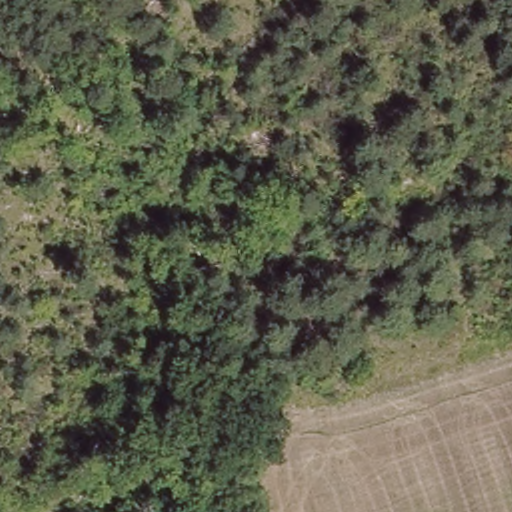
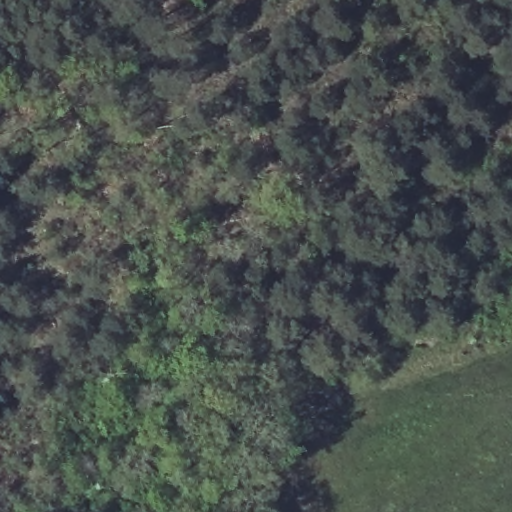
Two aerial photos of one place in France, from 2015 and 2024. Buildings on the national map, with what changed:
[]

